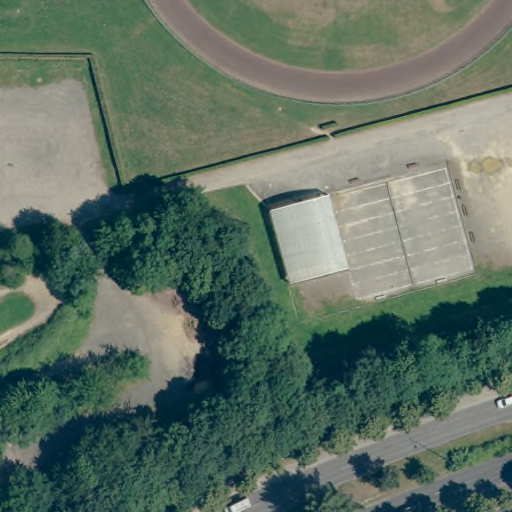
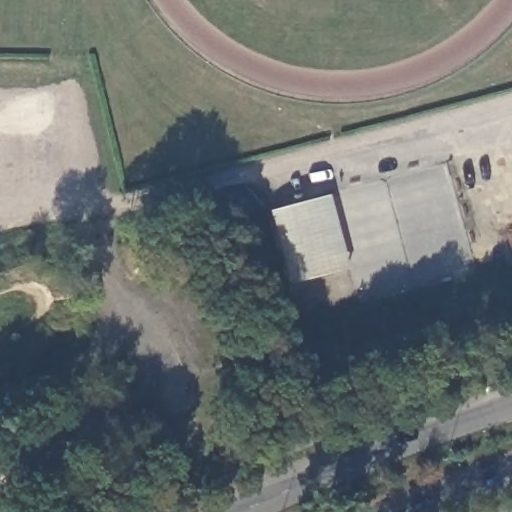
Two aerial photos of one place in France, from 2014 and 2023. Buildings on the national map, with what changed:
unchanged [(328,197),(348,269),(290,285),(270,212),(328,197)]

